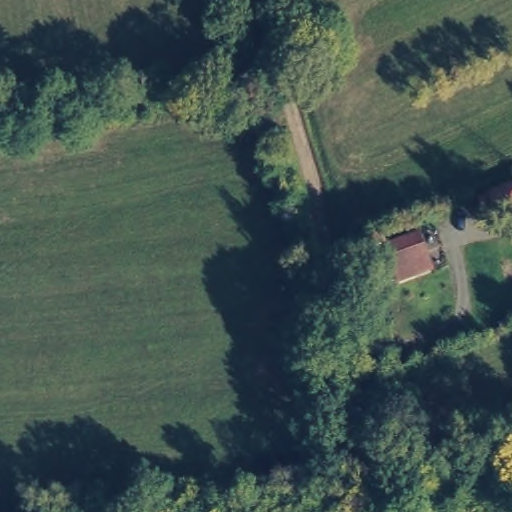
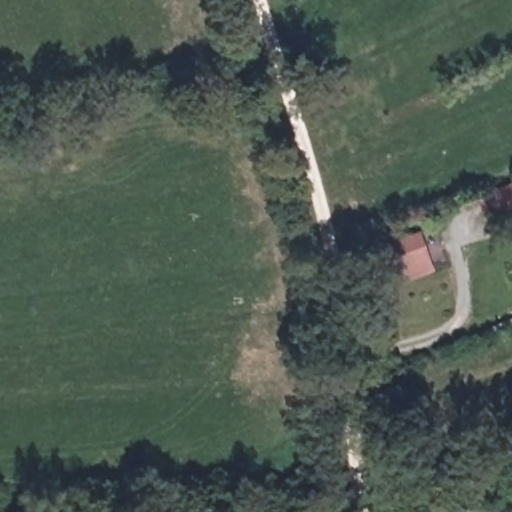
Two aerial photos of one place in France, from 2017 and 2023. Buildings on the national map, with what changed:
unchanged [(492,207),(486,196),(512,184),(512,205),(494,211),(492,207)]
unchanged [(425,275),(395,287),(376,245),(404,230),(425,275)]

